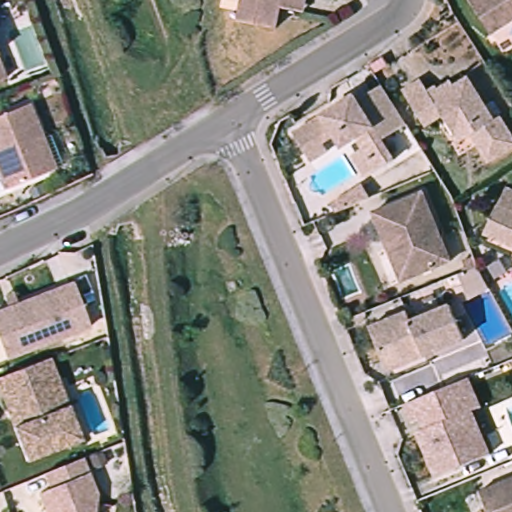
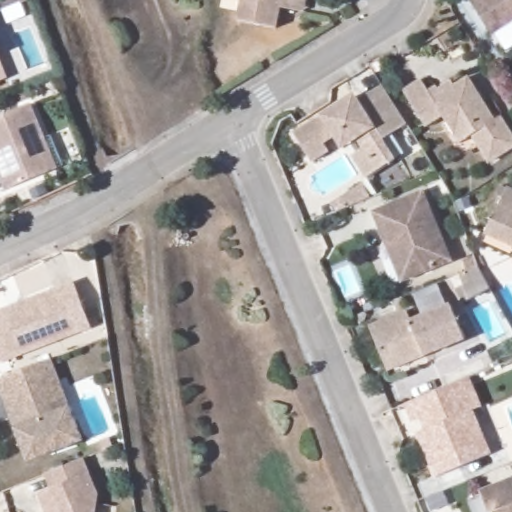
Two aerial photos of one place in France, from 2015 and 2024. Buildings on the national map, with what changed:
unchanged [(285,9),(281,30),(242,22),(247,0),(311,0),(309,12),(285,9)]
unchanged [(466,0),(512,0),(512,16),(486,32),(466,0)]
unchanged [(12,77),(0,82),(0,47),(12,77)]
unchanged [(440,117),(423,128),(401,92),(419,81),(426,94),(434,89),(438,96),(466,79),(492,122),(499,119),(512,139),(512,150),(488,165),(470,137),(457,145),(444,124),(440,117)]
unchanged [(394,117),(370,133),(385,157),(357,176),(343,155),(355,147),(348,136),(333,147),(325,135),(313,141),(319,150),(302,160),(284,132),(344,94),(347,99),(372,82),(394,117)]
unchanged [(53,176),(0,198),(0,121),(34,108),(48,141),(61,172),(53,176)]
unchanged [(320,202),(351,183),(358,196),(325,210),(320,202)]
unchanged [(506,191),(512,193),(512,248),(485,236),(506,191)]
unchanged [(378,239),(368,214),(418,193),(446,262),(406,278),(396,282),(378,239)]
unchanged [(477,267),(489,290),(470,297),(459,275),(477,267)]
unchanged [(0,331),(0,313),(77,281),(96,325),(12,360),(0,331)]
unchanged [(385,362),(370,328),(408,312),(411,321),(451,305),(465,340),(425,357),(388,372),(385,362)]
unchanged [(52,358),(60,380),(51,383),(60,409),(70,406),(85,440),(30,462),(15,427),(22,425),(17,408),(8,411),(0,389),(0,379),(52,358)]
unchanged [(464,375),(475,403),(466,407),(484,452),(429,475),(411,430),(423,425),(419,415),(407,419),(399,401),(450,381),(464,375)]
unchanged [(100,499),(99,512),(49,512),(43,497),(55,492),(50,477),(87,462),(100,499)]
unchanged [(512,473),(512,512),(483,512),(474,489),(512,473)]

